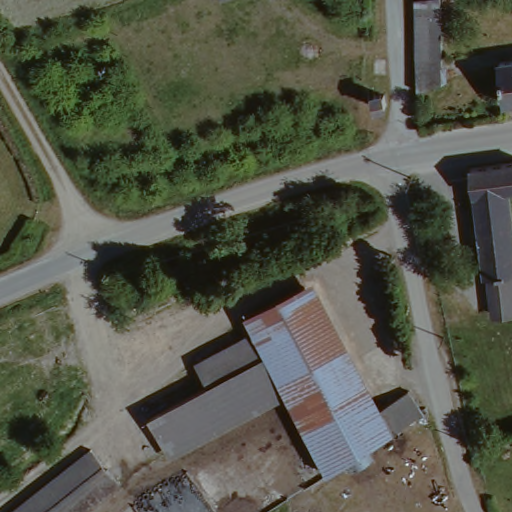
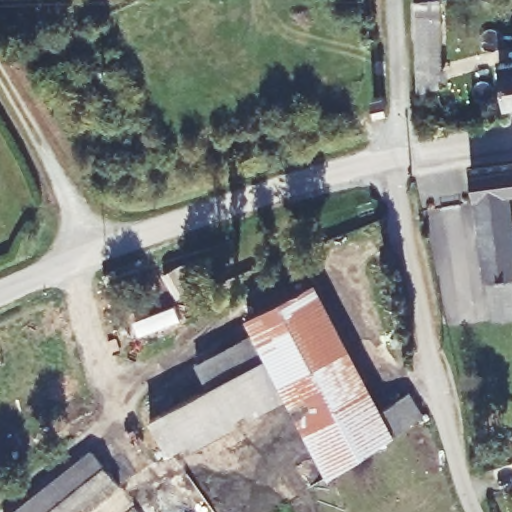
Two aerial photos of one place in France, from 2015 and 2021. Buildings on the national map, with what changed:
unchanged [(449,75),(424,76),(424,70),(423,9),(446,6),(449,75)]
unchanged [(512,55),(512,97),(507,56),(512,55)]
unchanged [(493,272),(474,167),(512,161),(512,190),(509,191),(512,205),(512,311),(509,312),(501,272),(493,272)]
unchanged [(164,276),(188,262),(201,283),(176,297),(164,276)]
unchanged [(303,391),(187,449),(165,410),(223,378),(212,357),(278,322),(271,307),(320,281),(384,407),(331,442),(303,391)]
unchanged [(421,382),(436,406),(343,467),(326,446),(331,442),(384,407),(421,382)]
unchanged [(125,483),(88,512),(18,512),(98,448),(125,483)]

